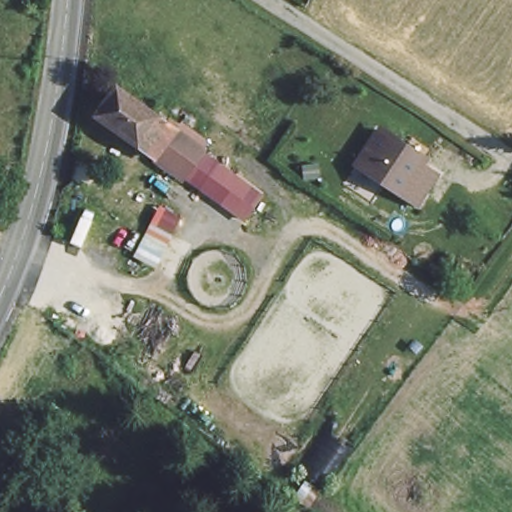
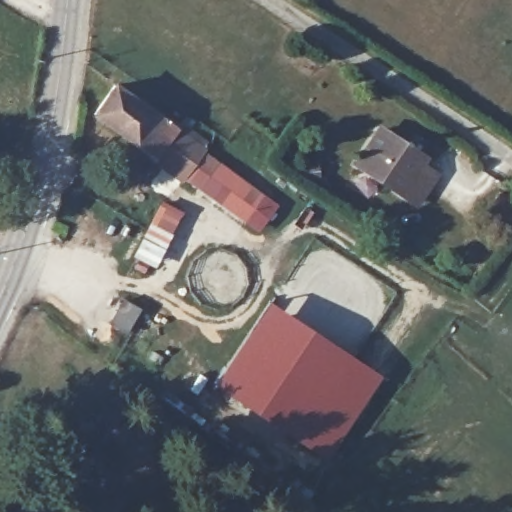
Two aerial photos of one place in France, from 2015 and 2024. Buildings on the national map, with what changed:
unchanged [(151,144),(146,146),(93,108),(123,77),(205,146),(183,174),(151,144)]
unchanged [(382,127),(411,146),(408,151),(440,172),(421,200),(360,161),(382,127)]
unchanged [(264,194),(246,218),(204,187),(220,163),(264,194)]
new [(132,256),(164,202),(184,214),(152,268),(132,256)]
new [(268,301),(340,347),(384,378),(356,421),(325,465),(213,385),(268,301)]

